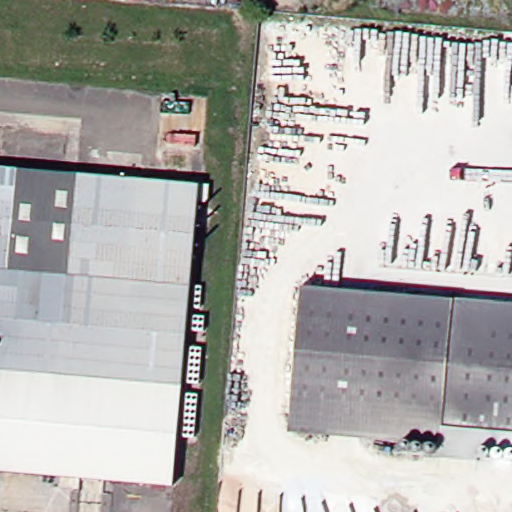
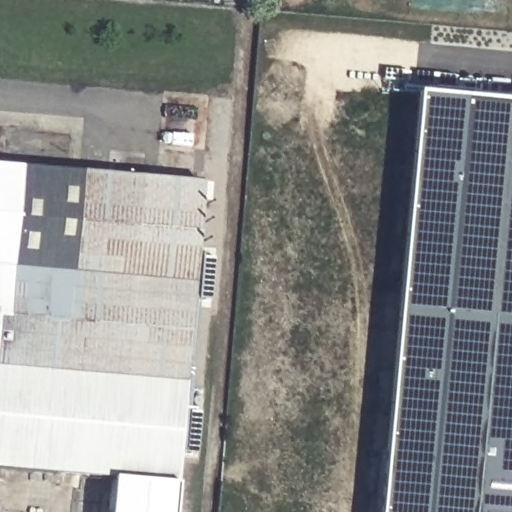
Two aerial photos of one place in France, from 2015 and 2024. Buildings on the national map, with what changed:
new [(512,105),(512,512),(374,512),(412,96),(512,105)]
unchanged [(207,182),(180,481),(0,467),(0,166),(207,182)]
demolished [(487,445),(296,431),(308,290),(512,307),(512,465),(487,462),(487,445)]
demolished [(332,440),(332,450),(312,448),(313,440),(332,440)]
new [(110,475),(174,480),(171,512),(107,512),(110,475)]

